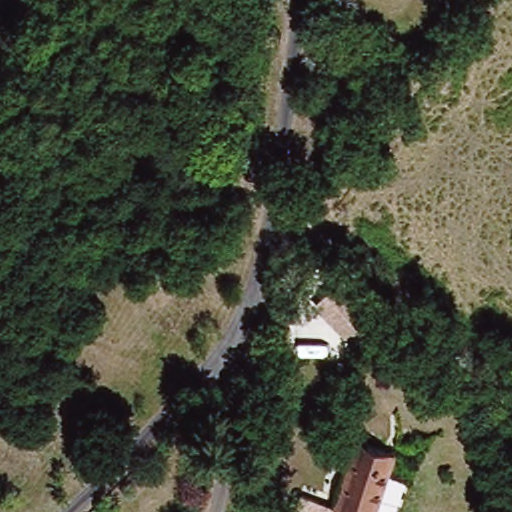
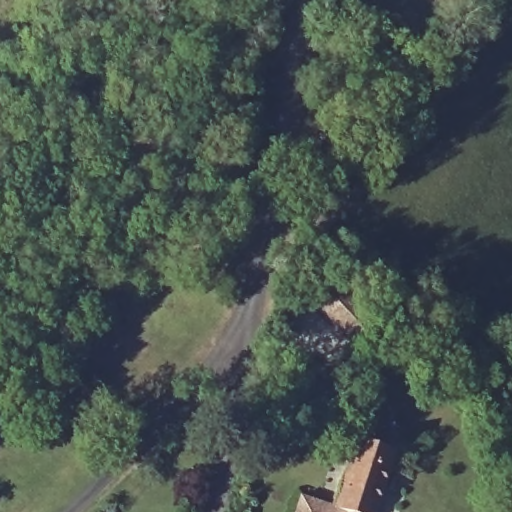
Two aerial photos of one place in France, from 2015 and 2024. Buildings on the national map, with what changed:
unchanged [(348,339),(319,317),(308,307),(329,283),(340,292),(350,301),(355,295),(371,310),(366,316),(368,317),(348,339)]
unchanged [(392,448),(371,512),(343,512),(345,509),(335,506),(358,436),(392,448)]

